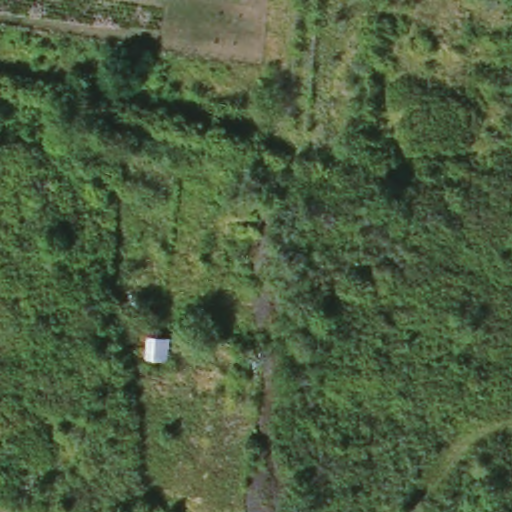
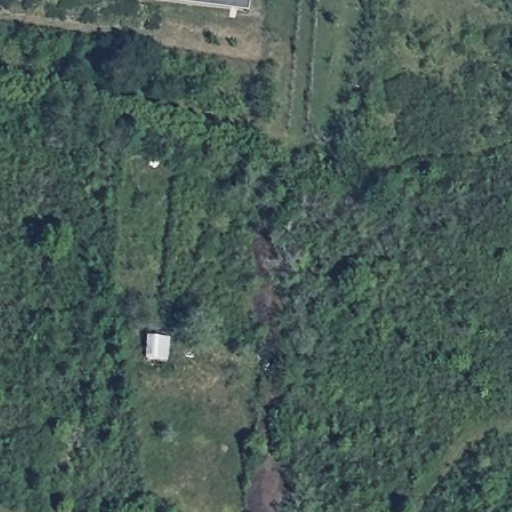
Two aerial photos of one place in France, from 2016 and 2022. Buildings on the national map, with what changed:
unchanged [(172,340),(172,360),(150,357),(152,336),(172,340)]

